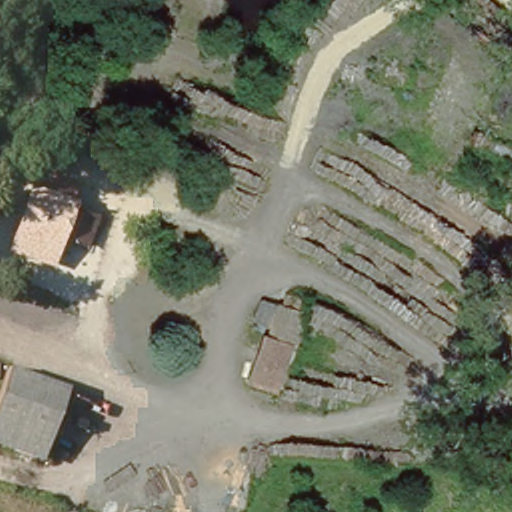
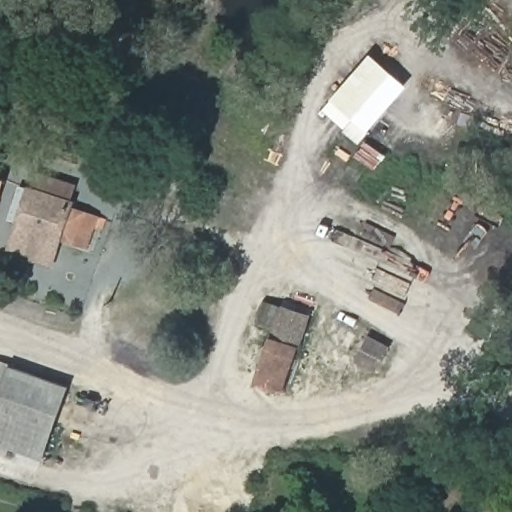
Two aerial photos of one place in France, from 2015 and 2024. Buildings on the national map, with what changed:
new [(322,110),(331,100),(371,55),(407,87),(368,132),(358,144),(345,129),(322,110)]
unchanged [(39,173),(76,185),(69,201),(35,188),(39,173)]
new [(6,180),(0,200),(0,177),(6,180)]
unchanged [(94,210),(80,249),(62,242),(20,226),(35,188),(94,210)]
new [(20,226),(62,242),(53,269),(10,255),(20,226)]
unchanged [(232,245),(222,273),(194,262),(204,234),(232,245)]
unchanged [(281,402),(251,389),(277,335),(308,349),(281,402)]
unchanged [(12,366),(71,387),(45,460),(0,444),(0,399),(12,366)]

